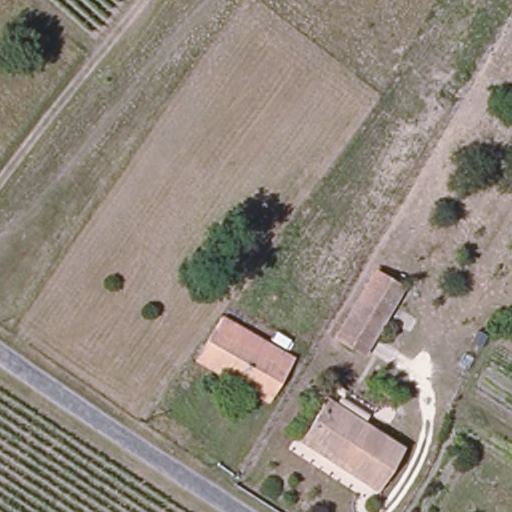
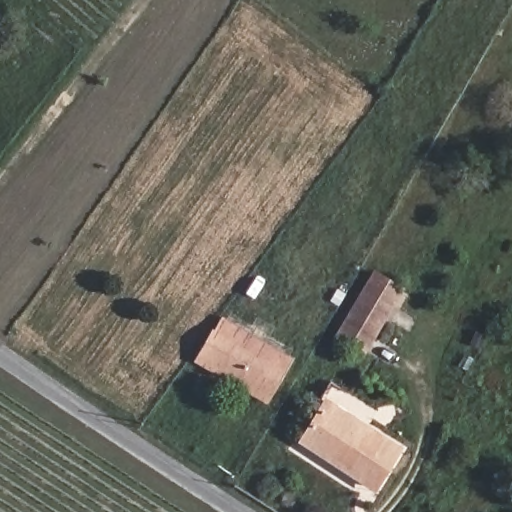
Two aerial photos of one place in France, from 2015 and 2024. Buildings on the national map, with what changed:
unchanged [(396,287),(358,353),(333,339),(369,272),(396,287)]
unchanged [(288,372),(270,405),(198,361),(215,331),(288,372)]
unchanged [(371,490),(297,442),(323,403),(397,450),(371,490)]

